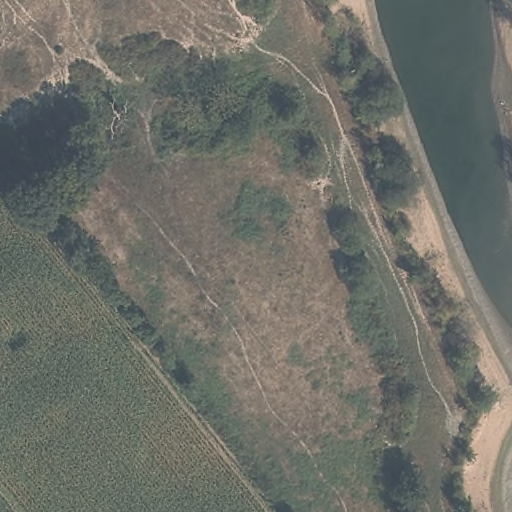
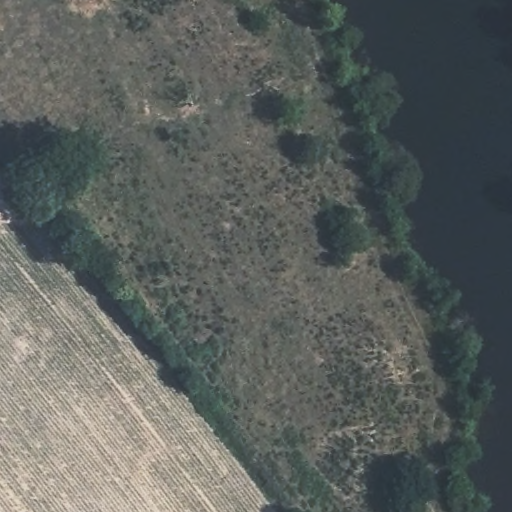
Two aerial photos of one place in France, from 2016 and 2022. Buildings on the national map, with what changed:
[]

